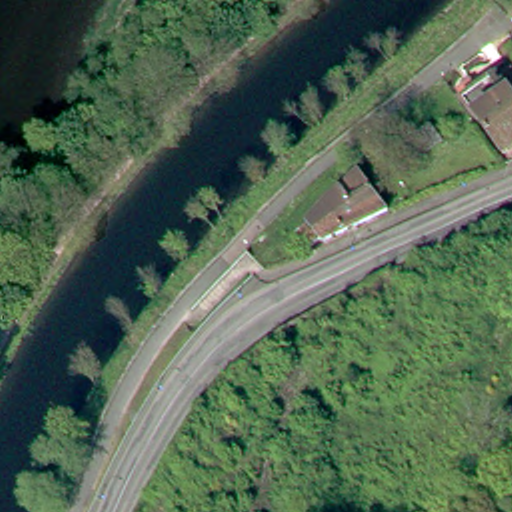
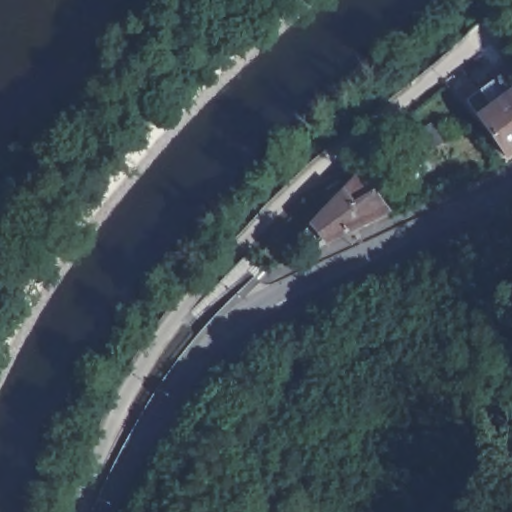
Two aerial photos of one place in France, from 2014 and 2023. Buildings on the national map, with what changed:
unchanged [(468,109),(481,98),(487,107),(507,92),(502,87),(508,82),(512,80),(512,169),(474,117),(475,117),(468,109)]
unchanged [(303,220),(352,168),(384,207),(320,238),(303,220)]

